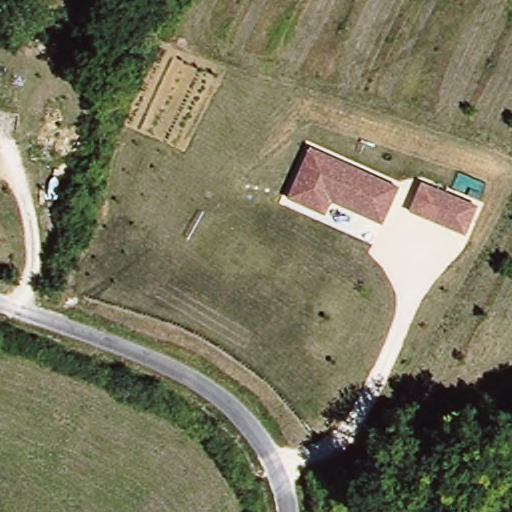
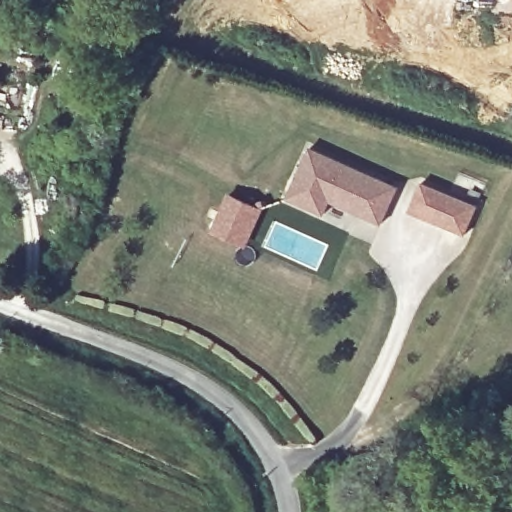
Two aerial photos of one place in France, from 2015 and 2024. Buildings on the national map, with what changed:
unchanged [(310,145),(398,185),(382,222),(331,201),(326,211),(288,195),(310,145)]
unchanged [(422,181),(477,204),(465,232),(411,210),(422,181)]
new [(227,192),(264,207),(246,249),(210,232),(227,192)]

